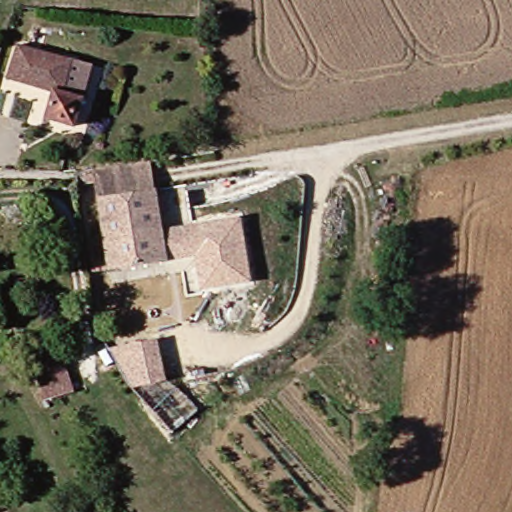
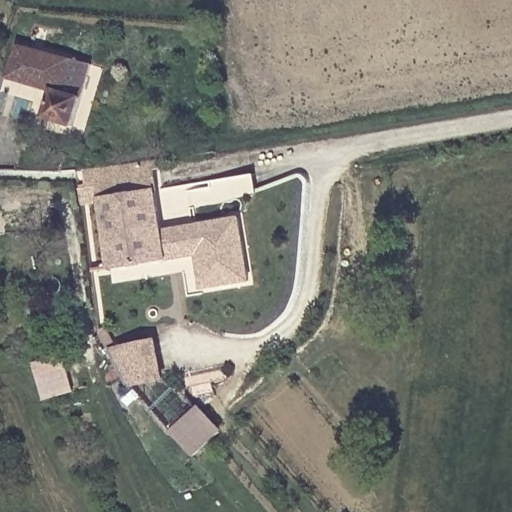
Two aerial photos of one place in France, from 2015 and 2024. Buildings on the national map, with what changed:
unchanged [(40,126),(45,99),(0,89),(0,82),(8,42),(85,58),(84,65),(72,133),(40,126)]
unchanged [(160,192),(109,199),(106,178),(137,173),(156,169),(160,192)]
unchanged [(251,280),(207,286),(203,286),(199,252),(168,256),(116,263),(109,199),(160,192),(165,228),(196,224),(245,217),(251,280)]
unchanged [(168,379),(135,385),(134,385),(115,351),(159,342),(168,379)]
unchanged [(77,391),(44,404),(31,364),(66,351),(77,391)]
new [(172,432),(201,406),(224,431),(196,458),(172,432)]

